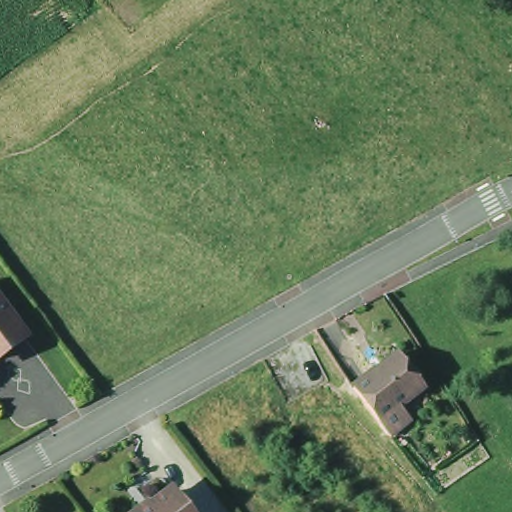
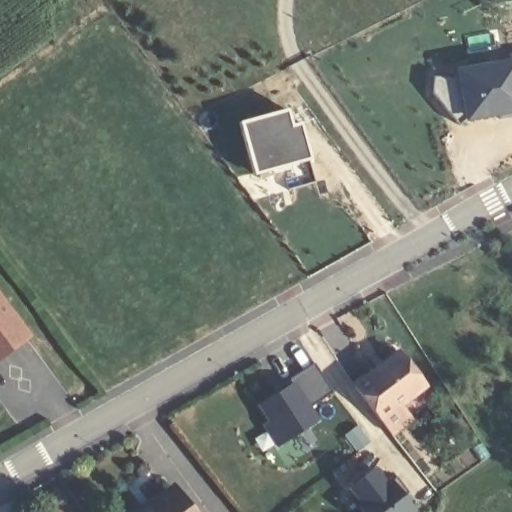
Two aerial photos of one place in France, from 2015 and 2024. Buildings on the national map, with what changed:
new [(512,53),(512,58),(511,53),(512,53)]
new [(458,67),(512,62),(512,117),(469,122),(458,67)]
new [(254,176),(240,122),(288,109),(292,125),(300,124),(310,160),(254,176)]
unchanged [(27,322),(0,341),(0,284),(27,322)]
demolished [(330,373),(290,397),(264,358),(305,333),(309,337),(330,373)]
unchanged [(423,380),(382,414),(357,383),(400,350),(423,380)]
new [(332,392),(311,405),(322,421),(277,449),(262,426),(268,422),(258,407),(292,386),(288,380),(315,363),(332,392)]
new [(389,482),(397,477),(408,492),(405,496),(416,512),(361,512),(357,507),(360,504),(349,489),(377,467),(389,482)]
unchanged [(145,507),(150,503),(153,507),(170,493),(184,512),(138,512),(145,507)]

